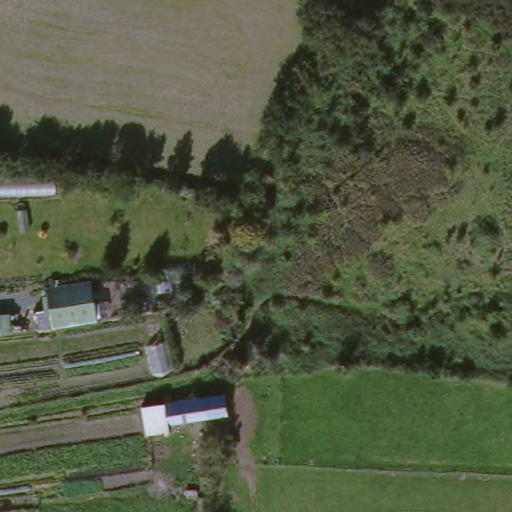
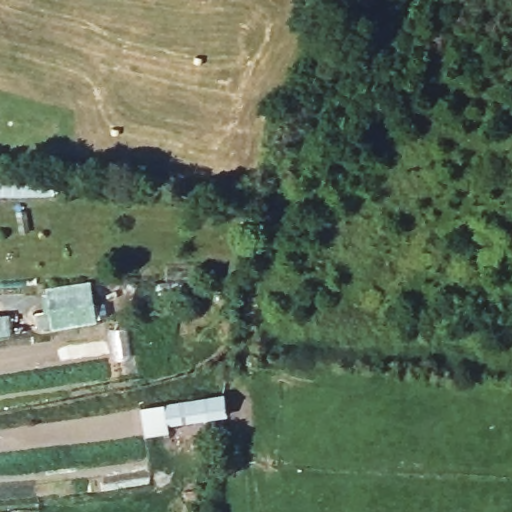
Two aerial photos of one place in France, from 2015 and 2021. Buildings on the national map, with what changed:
unchanged [(44,295),(86,283),(95,323),(53,333),(44,295)]
unchanged [(226,420),(169,428),(170,438),(144,442),(137,412),(221,394),(226,420)]

